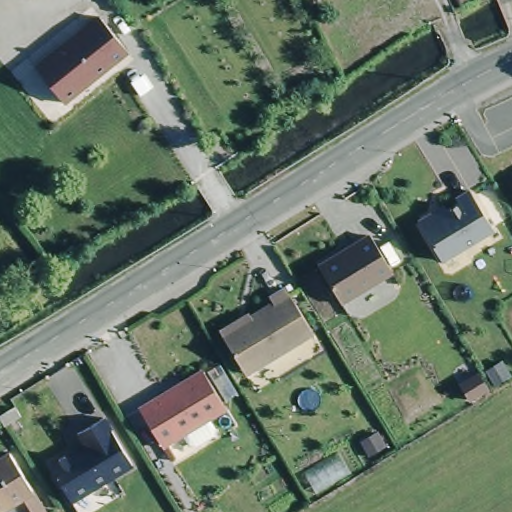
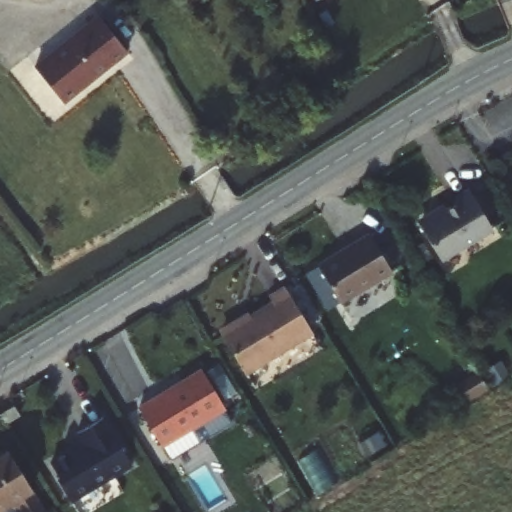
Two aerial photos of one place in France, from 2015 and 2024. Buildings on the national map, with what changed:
unchanged [(24,1),(24,0),(25,0),(24,1)]
unchanged [(322,2),(321,0),(328,0),(322,2)]
unchanged [(110,35),(125,54),(62,107),(33,72),(96,19),(110,35)]
unchanged [(512,180),(512,188),(508,182),(512,180)]
unchanged [(489,234),(437,265),(417,230),(420,222),(427,218),(434,220),(455,207),(452,203),(466,195),(489,234)]
unchanged [(366,239),(388,276),(337,307),(315,270),(366,239)]
unchanged [(307,335),(238,375),(215,336),(216,331),(232,321),(234,324),(267,305),(263,297),(278,288),(307,335)]
unchanged [(221,412),(204,422),(210,432),(213,433),(212,440),(209,440),(192,450),(185,448),(178,437),(157,450),(135,412),(198,373),(221,412)]
unchanged [(13,413),(3,420),(0,421),(0,408),(8,403),(13,413)]
unchanged [(127,467),(67,505),(52,482),(55,480),(47,467),(67,454),(68,456),(80,448),(72,436),(99,420),(127,467)]
unchanged [(2,512),(0,512),(0,464),(10,458),(45,512),(22,512),(17,503),(2,512)]

